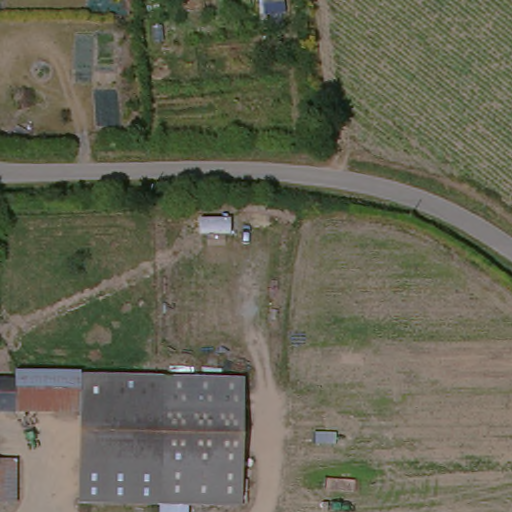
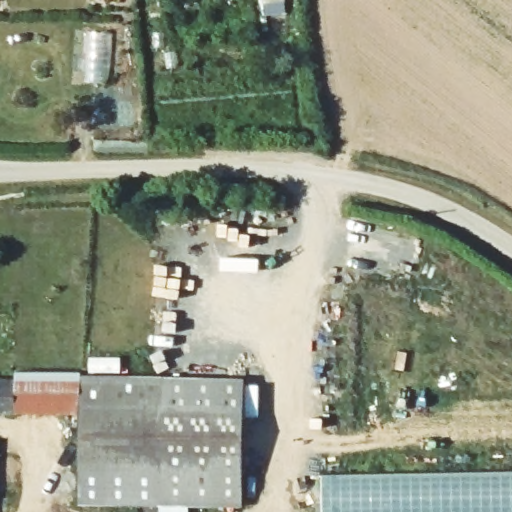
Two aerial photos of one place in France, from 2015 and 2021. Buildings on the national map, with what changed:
unchanged [(90,506),(84,414),(19,418),(18,385),(18,376),(241,365),(249,494),(177,500),(90,506)]
unchanged [(18,385),(19,418),(0,420),(0,386),(18,385)]
new [(512,471),(512,512),(324,512),(323,474),(512,471)]

